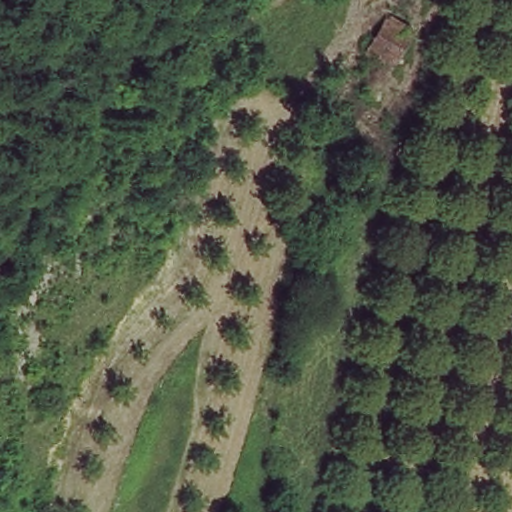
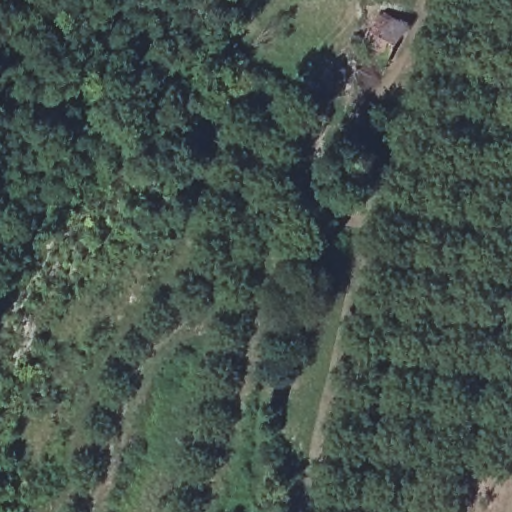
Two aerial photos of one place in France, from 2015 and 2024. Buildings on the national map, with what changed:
unchanged [(369,74),(347,60),(372,20),(395,33),(395,34),(369,74)]

